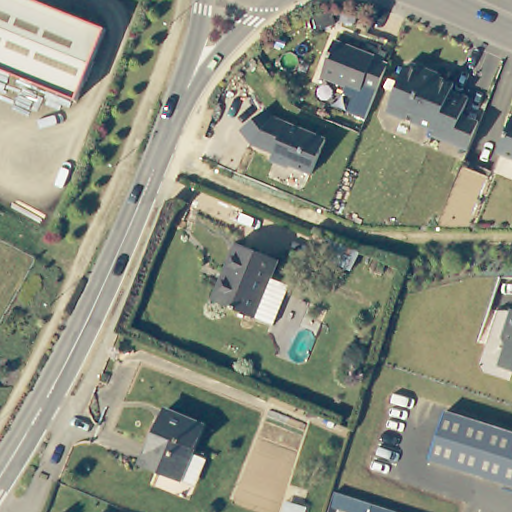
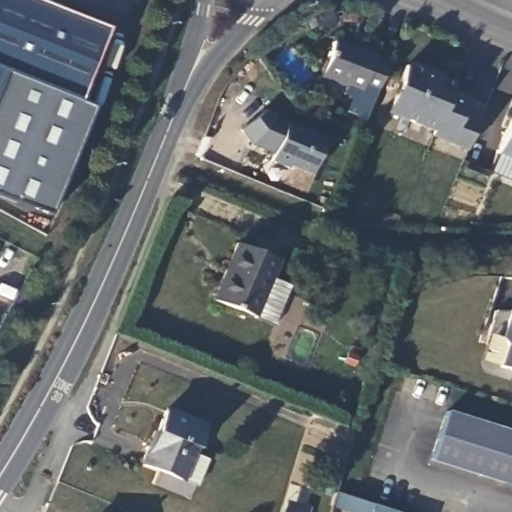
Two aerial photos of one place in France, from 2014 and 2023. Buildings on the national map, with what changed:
unchanged [(76,100),(0,69),(0,0),(36,0),(103,27),(76,100)]
unchanged [(376,52),(375,56),(387,61),(373,97),(361,92),(362,89),(346,82),(347,79),(325,70),(337,37),(376,52)]
new [(0,195),(0,69),(76,100),(92,108),(48,215),(0,195)]
unchanged [(452,156),(418,142),(419,139),(398,130),(416,84),(417,82),(420,80),(424,79),(428,79),(432,81),(435,85),(436,89),(462,99),(457,114),(467,119),(452,156)]
unchanged [(270,109),(276,117),(329,139),(315,174),(293,165),(292,167),(275,160),(277,152),(256,144),(244,130),(270,109)]
unchanged [(501,154),(512,124),(512,157),(501,154)]
unchanged [(276,261),(271,277),(288,284),(272,326),(209,300),(233,244),(276,261)]
unchanged [(503,366),(511,346),(507,337),(512,321),(512,370),(503,366)]
unchanged [(170,410),(207,423),(186,478),(142,461),(151,442),(156,445),(170,410)]
unchanged [(449,416),(512,436),(512,489),(435,464),(449,416)]
unchanged [(332,506),(337,495),(392,512),(348,512),(332,506)]

